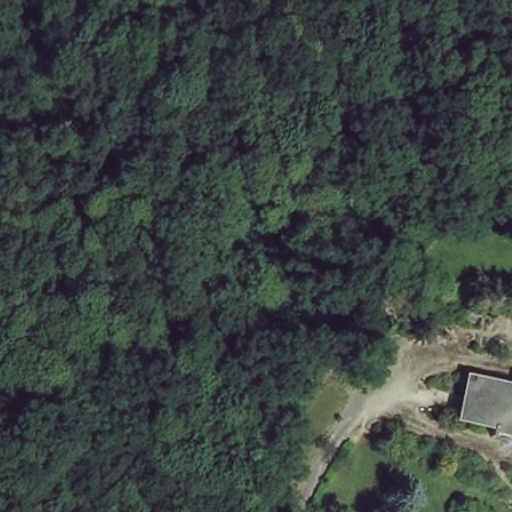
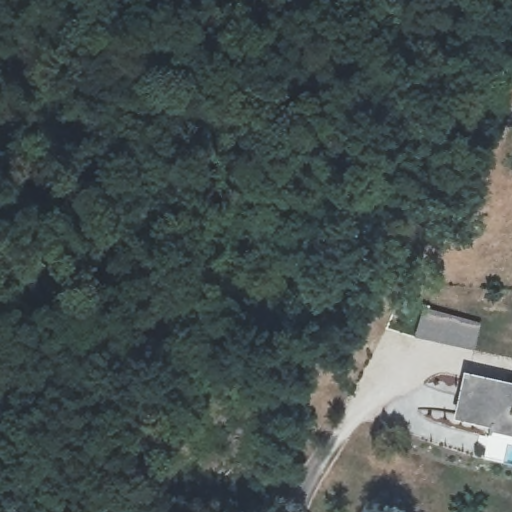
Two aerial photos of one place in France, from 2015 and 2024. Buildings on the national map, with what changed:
unchanged [(416,306),(404,321),(387,310),(399,293),(416,306)]
new [(416,336),(423,308),(481,323),(473,351),(416,336)]
unchanged [(488,428),(457,420),(465,380),(512,391),(512,445),(485,439),(488,428)]

